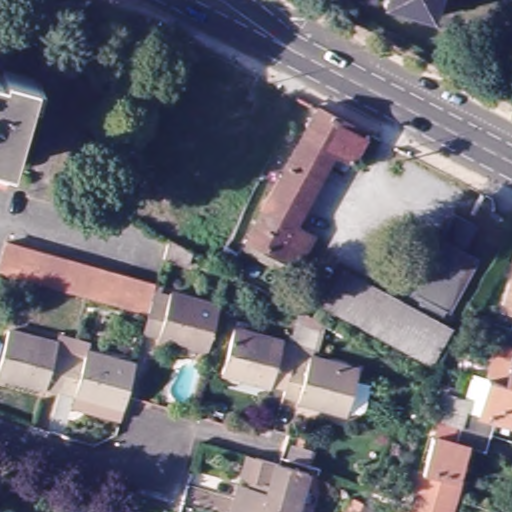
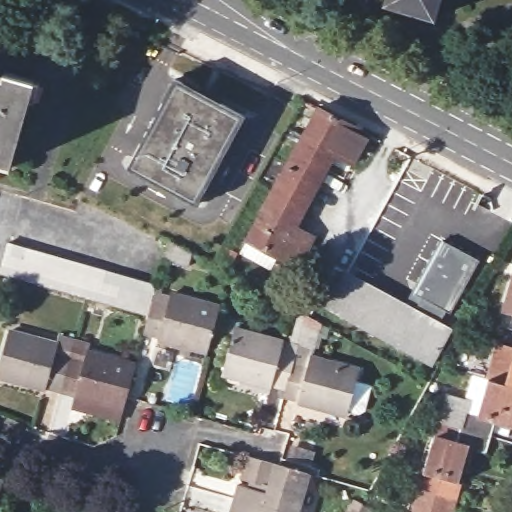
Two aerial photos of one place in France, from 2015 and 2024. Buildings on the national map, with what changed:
unchanged [(435,20),(388,7),(390,0),(441,0),(435,20)]
demolished [(258,73),(244,98),(253,102),(247,112),(238,107),(223,133),(202,122),(208,113),(198,108),(164,89),(192,39),(258,73)]
unchanged [(3,70),(34,77),(13,166),(0,163),(0,77),(1,77),(3,70)]
new [(129,166),(176,79),(243,114),(194,203),(129,166)]
unchanged [(237,247),(244,236),(243,235),(314,103),(364,129),(348,158),(332,148),(292,221),(308,231),(291,261),(272,252),(266,263),(237,247)]
demolished [(129,142),(140,148),(136,155),(139,157),(117,194),(104,186),(129,142)]
unchanged [(402,303),(409,291),(430,251),(438,236),(451,212),(474,224),(475,225),(462,250),(460,249),(440,238),(433,252),(411,292),(419,297),(413,309),(402,303)]
unchanged [(433,252),(440,238),(460,249),(462,250),(477,258),(448,312),(445,310),(439,322),(413,309),(419,297),(411,292),(433,252)]
unchanged [(192,254),(187,268),(163,259),(169,241),(192,254)]
unchanged [(151,322),(3,281),(12,248),(160,291),(151,322)]
unchanged [(402,303),(413,309),(439,322),(450,328),(431,364),(326,307),(345,272),(402,303)]
unchanged [(506,309),(512,288),(512,312),(506,309)]
unchanged [(176,354),(160,350),(161,347),(145,343),(151,322),(160,291),(168,294),(165,303),(171,306),(172,304),(223,319),(209,365),(187,358),(185,362),(175,359),(176,354)]
unchanged [(318,360),(298,354),(299,349),(310,309),(333,321),(318,360)]
unchanged [(65,391),(49,386),(48,390),(0,375),(12,331),(62,345),(67,328),(81,332),(65,391)]
unchanged [(240,378),(224,374),(236,330),(299,349),(298,354),(287,390),(272,385),(271,387),(253,382),(251,387),(238,384),(240,378)]
unchanged [(76,407),(78,397),(79,395),(65,391),(81,332),(95,336),(90,353),(135,365),(125,399),(121,409),(118,419),(76,407)]
unchanged [(319,407),(301,402),(302,400),(286,396),(287,390),(298,354),(318,360),(361,372),(348,415),(331,410),(329,416),(317,413),(319,407)]
unchanged [(506,384),(512,364),(512,386),(506,384)]
unchanged [(512,386),(512,424),(491,419),(487,435),(440,422),(446,399),(462,405),(472,375),(506,384),(512,386)]
unchanged [(482,452),(468,448),(454,500),(420,490),(440,422),(487,435),(482,452)]
unchanged [(252,459),(314,476),(304,512),(270,512),(237,502),(241,488),(266,496),(268,489),(245,482),(252,459)]
unchanged [(451,512),(413,512),(420,490),(454,500),(451,512)]
unchanged [(270,512),(235,512),(237,502),(270,512)]
unchanged [(67,512),(53,512),(55,506),(67,509),(67,512)]

